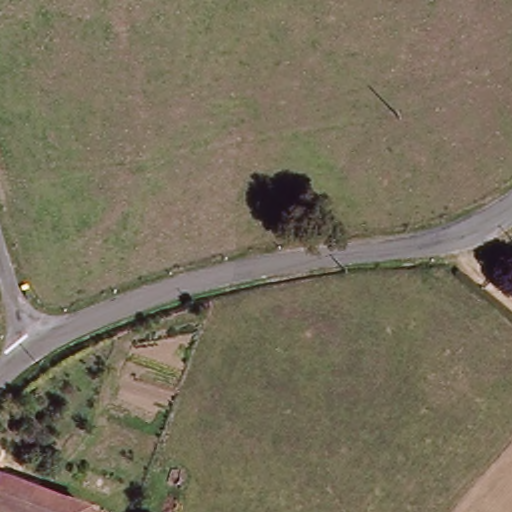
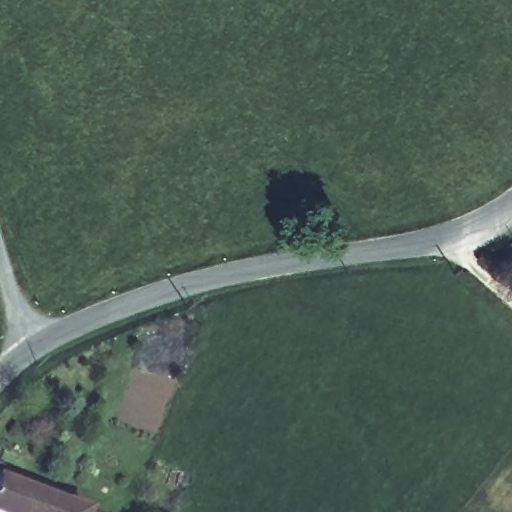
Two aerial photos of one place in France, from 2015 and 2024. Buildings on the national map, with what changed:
unchanged [(0,512),(0,489),(81,512),(0,512)]

